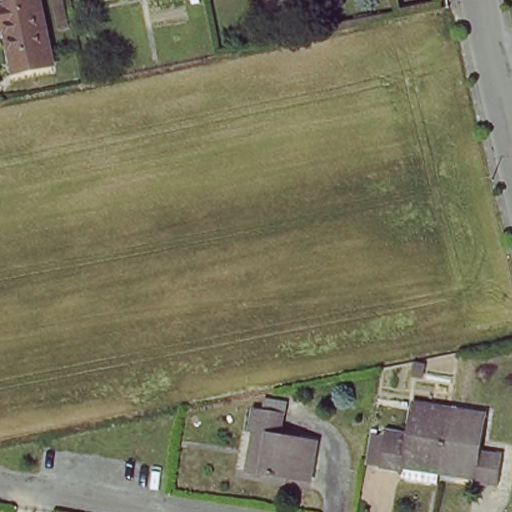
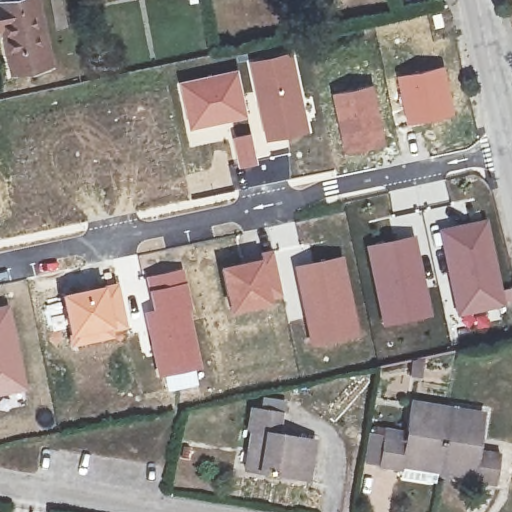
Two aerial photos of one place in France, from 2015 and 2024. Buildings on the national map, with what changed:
unchanged [(41,0),(52,64),(18,69),(10,21),(0,23),(0,3),(16,0),(41,0)]
new [(294,50),(311,132),(265,141),(246,59),(294,50)]
new [(445,64),(456,116),(407,127),(396,74),(445,64)]
new [(237,67),(248,117),(187,131),(176,79),(237,67)]
new [(375,83),(388,145),(343,155),(330,91),(375,83)]
new [(251,132),(258,164),(237,168),(230,136),(251,132)]
new [(501,289),(510,287),(512,294),(512,304),(456,318),(437,228),(486,218),(501,289)]
new [(415,235),(432,317),(381,327),(363,245),(415,235)]
new [(259,257),(258,253),(272,250),(283,299),(228,315),(217,266),(259,257)]
new [(342,256),(359,336),(309,348),(292,266),(342,256)]
new [(150,308),(143,276),(182,268),(201,368),(195,370),(198,385),(165,392),(162,377),(157,378),(140,310),(150,308)]
new [(118,281),(128,331),(70,348),(59,294),(118,281)]
new [(8,303),(27,390),(0,397),(0,305),(8,303)]
unchanged [(482,413),(476,453),(500,457),(494,489),(470,485),(470,476),(437,471),(400,465),(398,472),(380,470),(385,438),(404,441),(412,402),(448,407),(482,413)]
unchanged [(280,414),(278,434),(319,442),(312,479),(247,465),(255,433),(245,430),(250,409),(280,414)]

